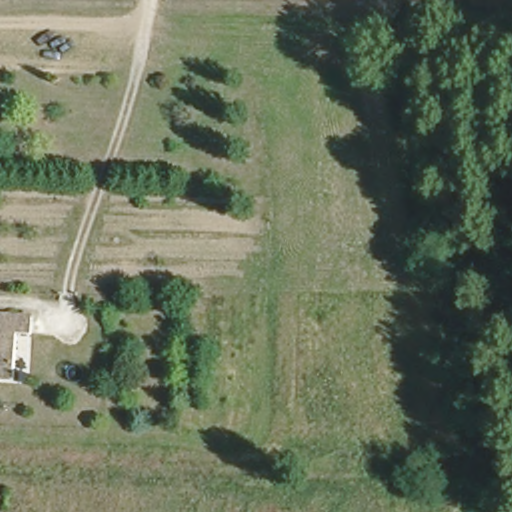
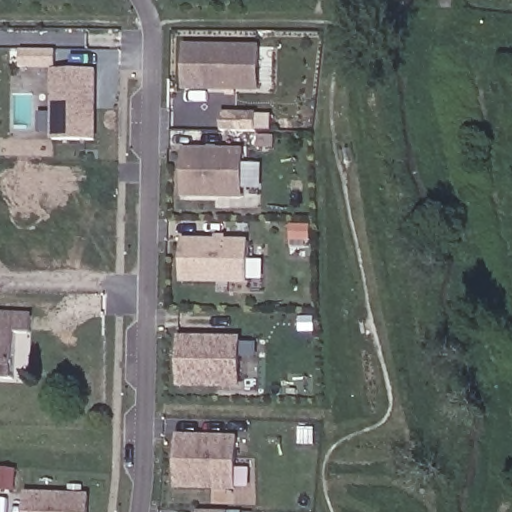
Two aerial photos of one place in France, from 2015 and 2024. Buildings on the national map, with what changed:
new [(260,46),(260,89),(188,87),(188,44),(260,46)]
new [(96,69),(96,139),(55,139),(56,69),(96,69)]
new [(259,131),(234,131),(234,113),(260,114),(259,131)]
new [(245,150),(245,197),(187,195),(187,149),(245,150)]
new [(252,243),(251,283),(184,282),(185,242),(252,243)]
unchanged [(36,331),(20,331),(16,377),(0,376),(0,312),(36,314),(36,331)]
new [(242,338),(242,387),(182,387),(182,339),(242,338)]
new [(241,438),(241,489),(183,488),(182,436),(241,438)]
new [(90,496),(89,512),(28,512),(29,494),(90,496)]
new [(233,512),(205,512),(205,511),(233,512)]

